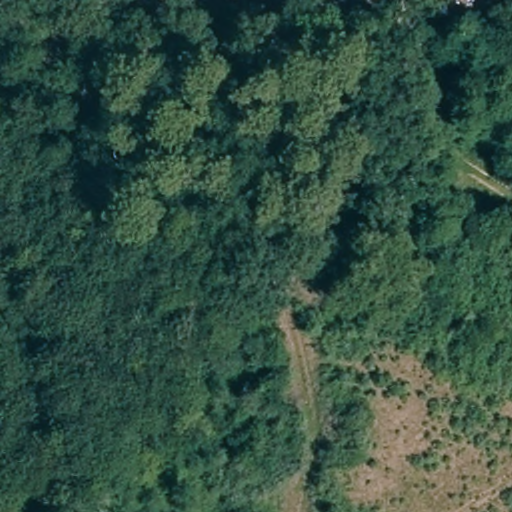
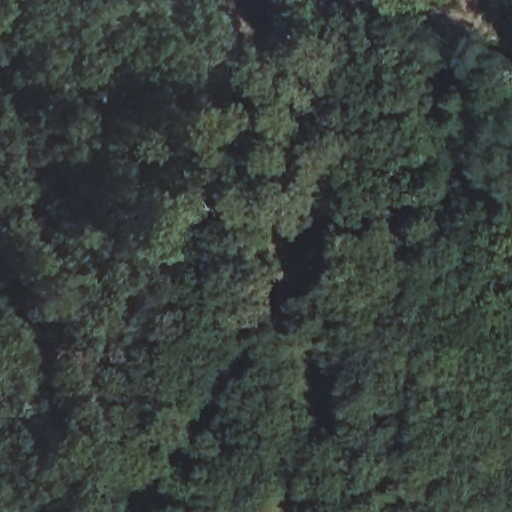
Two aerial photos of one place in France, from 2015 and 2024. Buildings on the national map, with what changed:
unchanged [(312,7),(304,0),(319,0),(312,7)]

